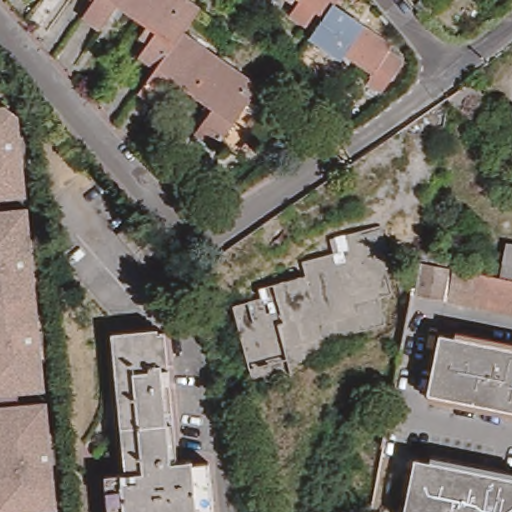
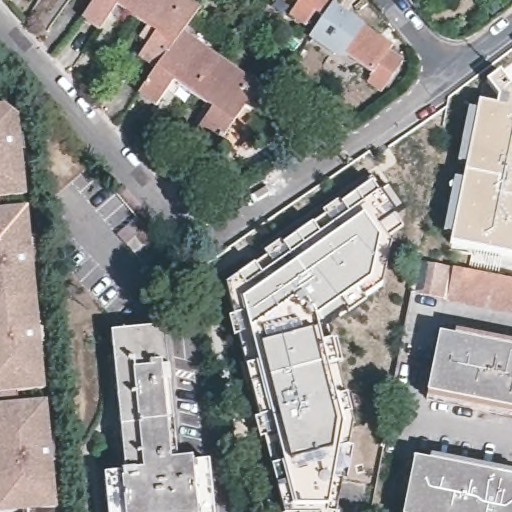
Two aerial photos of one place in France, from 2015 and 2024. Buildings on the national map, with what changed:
unchanged [(179,41),(163,65),(146,54),(162,29),(141,14),(121,0),(104,24),(88,11),(95,0),(150,0),(200,0),(206,5),(189,27),(179,41)]
unchanged [(394,50),(407,60),(386,91),(373,81),(376,71),(319,32),(329,17),(319,11),(309,30),(292,19),(301,5),(292,0),(341,0),(336,6),(394,46),(394,50)]
unchanged [(197,90),(180,78),(163,101),(146,89),(163,65),(179,41),(189,27),(224,51),(197,90)]
unchanged [(265,80),(220,142),(199,127),(216,104),(197,90),(224,51),(265,80)]
new [(498,106),(499,97),(487,84),(501,72),(512,88),(512,256),(451,245),(479,102),(498,106)]
demolished [(472,81),(482,95),(457,110),(448,96),(472,81)]
unchanged [(12,110),(15,134),(23,133),(25,149),(24,149),(26,164),(23,164),(26,194),(0,196),(0,103),(5,102),(12,110)]
unchanged [(253,145),(244,141),(258,120),(248,114),(252,109),(270,121),(253,145)]
demolished [(425,112),(429,120),(419,126),(414,120),(425,112)]
new [(381,194),(389,188),(404,209),(395,215),(379,227),(391,244),(382,286),(344,310),(319,329),(321,344),(333,341),(355,426),(348,448),(355,450),(346,480),(342,481),(337,512),(286,512),(228,288),(374,186),(381,194)]
unchanged [(34,237),(36,251),(37,251),(38,267),(30,268),(31,282),(35,282),(39,314),(35,315),(36,328),(45,327),(47,343),(46,343),(48,358),(44,358),(48,388),(20,390),(20,403),(48,401),(50,432),(54,431),(55,446),(56,446),(58,462),(48,462),(49,477),(59,477),(62,512),(21,512),(21,511),(8,512),(0,512),(0,202),(0,209),(28,207),(30,237),(34,237)]
unchanged [(161,283),(118,232),(137,215),(183,265),(161,283)]
unchanged [(416,292),(421,263),(512,279),(512,309),(416,292)]
unchanged [(166,361),(173,361),(175,376),(168,377),(178,460),(198,458),(198,461),(214,460),(220,512),(113,512),(109,470),(131,467),(116,327),(162,323),(166,361)]
unchanged [(503,404),(433,390),(445,333),(512,346),(512,406),(503,404)]
unchanged [(420,464),(512,483),(512,512),(410,512),(420,464)]

